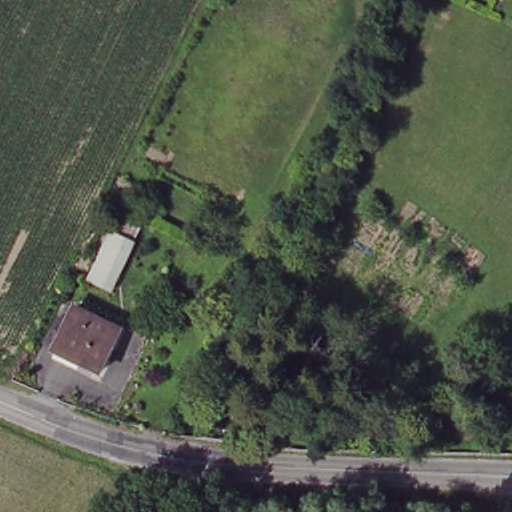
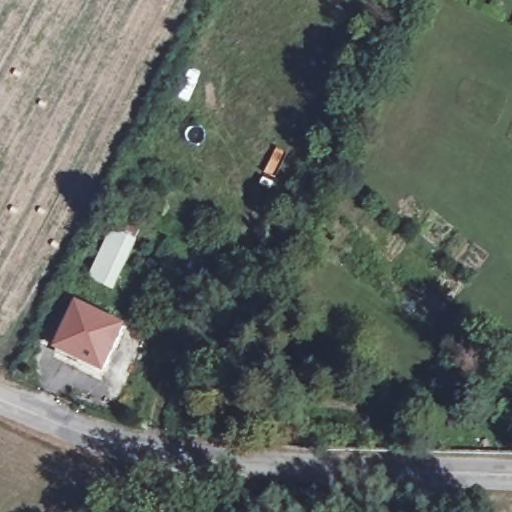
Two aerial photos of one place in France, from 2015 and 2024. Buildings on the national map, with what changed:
unchanged [(95,271),(118,223),(140,234),(116,281),(95,271)]
unchanged [(78,302),(127,324),(107,367),(58,345),(78,302)]

